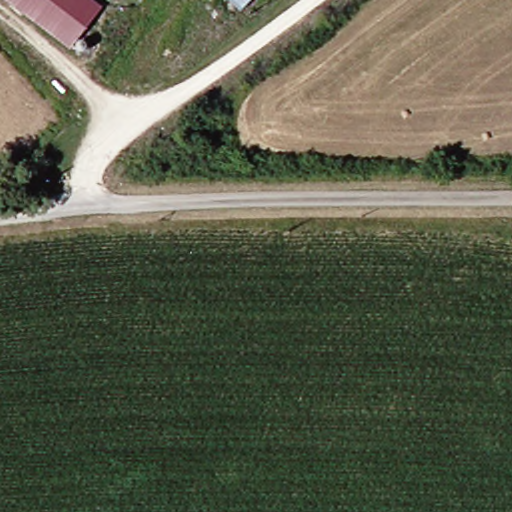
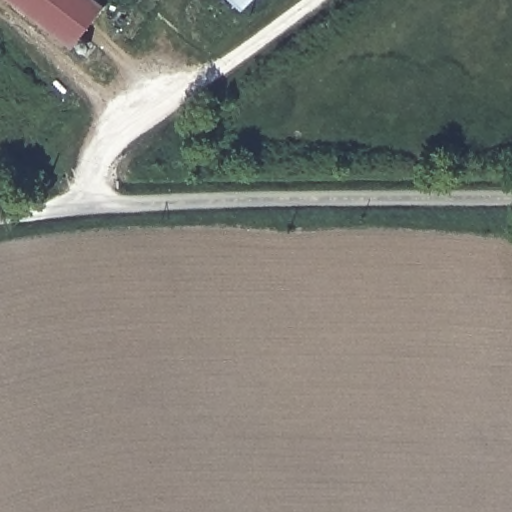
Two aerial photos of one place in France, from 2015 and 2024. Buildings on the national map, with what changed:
unchanged [(103,16),(72,52),(11,0),(84,0),(103,16)]
unchanged [(245,3),(243,0),(249,0),(245,3)]

